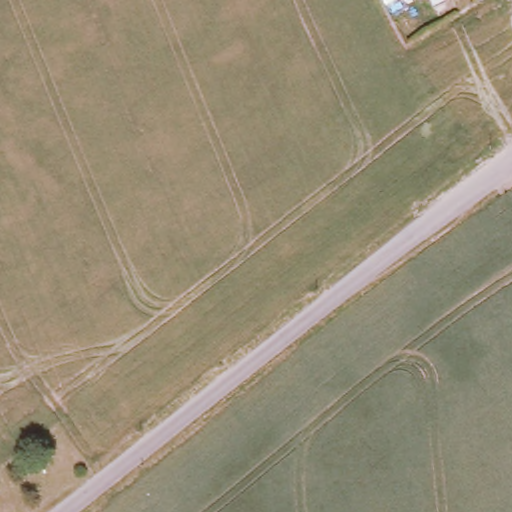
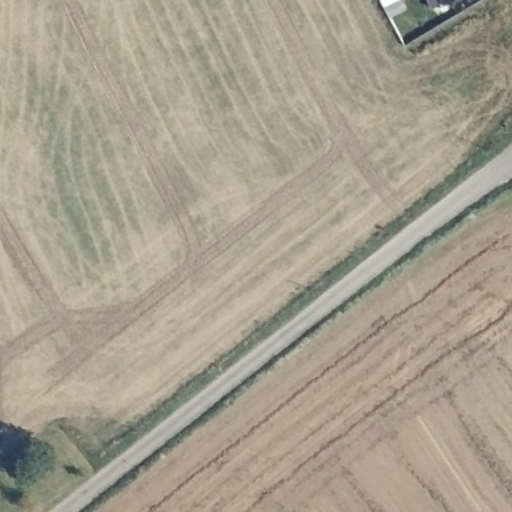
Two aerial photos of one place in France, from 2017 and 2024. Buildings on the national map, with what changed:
unchanged [(437,0),(433,1),(432,0),(437,0)]

